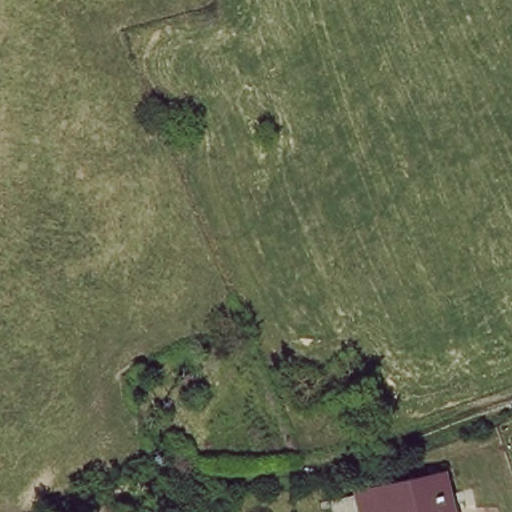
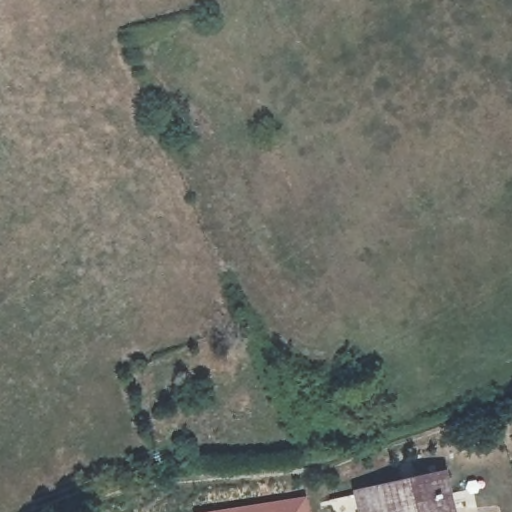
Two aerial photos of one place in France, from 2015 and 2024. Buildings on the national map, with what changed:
unchanged [(328,499),(340,497),(445,474),(451,496),(445,498),(448,512),(331,512),(328,499)]
new [(308,495),(310,512),(198,512),(308,495)]

